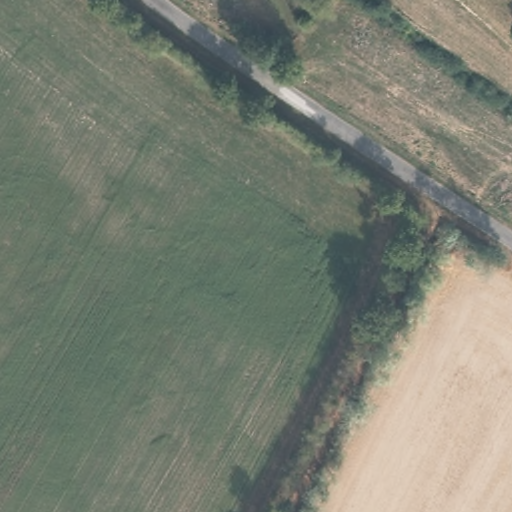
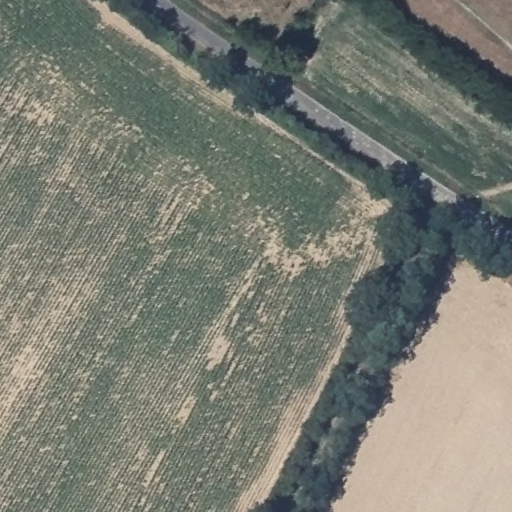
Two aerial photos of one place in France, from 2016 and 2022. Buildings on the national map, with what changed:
[]

